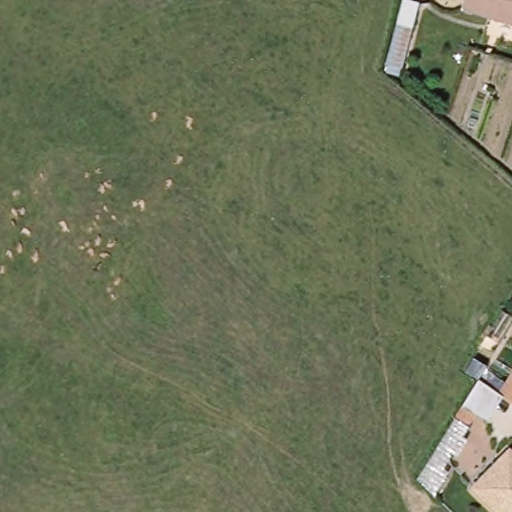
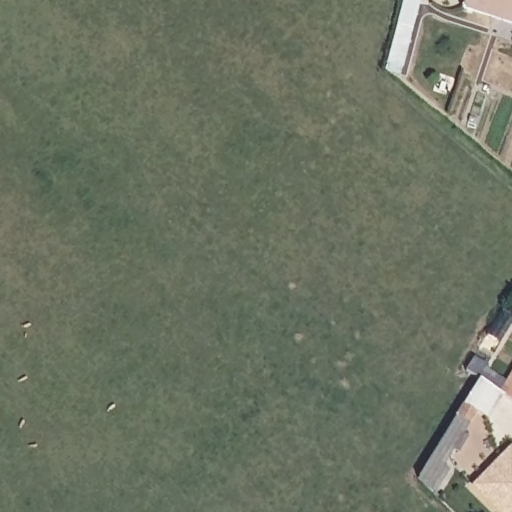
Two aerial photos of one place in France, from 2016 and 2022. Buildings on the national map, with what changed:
unchanged [(461,0),(512,0),(512,22),(460,5),(461,0)]
unchanged [(496,396),(512,369),(512,407),(496,396)]
unchanged [(512,444),(512,507),(481,476),(512,444)]

